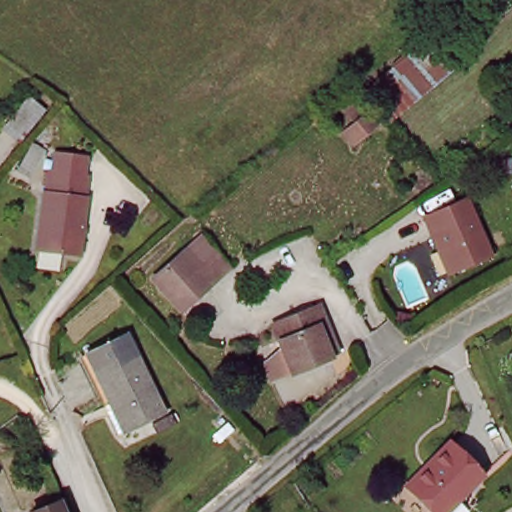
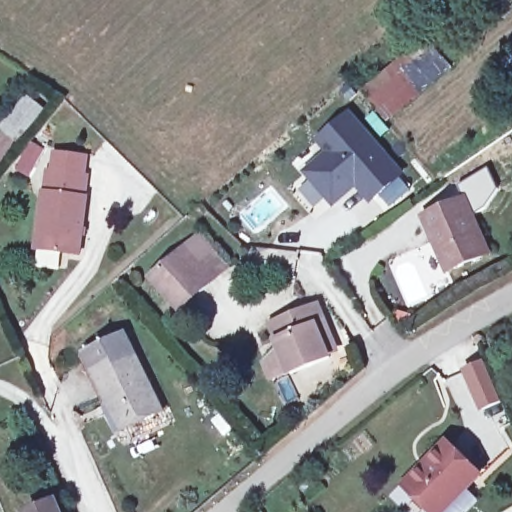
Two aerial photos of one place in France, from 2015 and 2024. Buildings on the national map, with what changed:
unchanged [(390,128),(359,93),(422,34),(452,77),(390,128)]
new [(356,188),(331,208),(301,171),(324,152),(314,141),(351,109),(404,174),(369,204),(356,188)]
unchanged [(46,173),(48,154),(78,156),(76,175),(80,175),(79,200),(83,200),(79,256),(35,253),(40,172),(46,173)]
unchanged [(482,255),(439,274),(414,216),(456,197),(482,255)]
unchanged [(218,259),(226,268),(208,285),(178,253),(197,236),(218,259)]
unchanged [(208,285),(181,311),(151,278),(178,253),(208,285)]
unchanged [(340,323),(332,327),(340,350),(291,373),(283,377),(270,341),(276,339),(287,334),(281,319),(328,297),(340,323)]
unchanged [(156,408),(107,431),(99,414),(104,411),(79,356),(123,336),(156,408)]
new [(483,360),(502,397),(482,408),(463,370),(483,360)]
unchanged [(438,512),(427,512),(400,483),(443,445),(474,478),(438,512)]
unchanged [(38,512),(53,505),(57,512),(38,512)]

